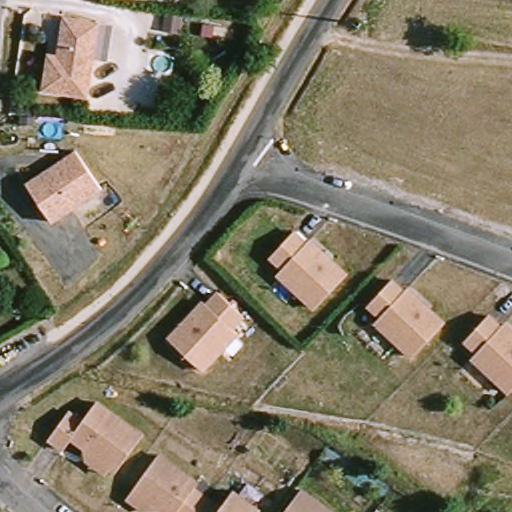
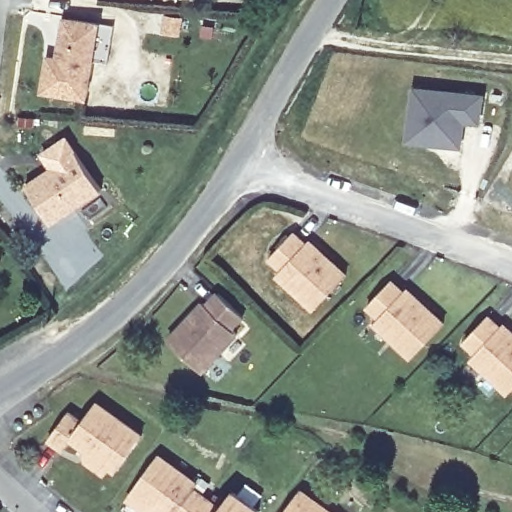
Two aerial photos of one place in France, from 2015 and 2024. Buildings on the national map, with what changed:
unchanged [(43,59),(52,61),(58,22),(93,27),(108,30),(102,68),(87,66),(82,102),(38,95),(43,59)]
new [(415,85),(483,94),(479,121),(464,119),(461,145),(409,138),(415,85)]
unchanged [(25,181),(75,148),(102,188),(53,221),(25,181)]
unchanged [(311,307),(274,272),(279,267),(266,256),(289,231),(302,242),(305,239),(318,251),(328,260),(342,273),(311,307)]
unchanged [(409,354),(372,320),(377,314),(364,303),(387,278),(400,290),(402,287),(416,299),(425,308),(440,321),(409,354)]
unchanged [(199,370),(166,339),(201,302),(206,307),(217,294),(242,318),(231,330),(234,333),(221,346),(213,356),(199,370)]
unchanged [(469,354),(474,349),(462,338),(484,313),(497,324),(500,321),(512,333),(512,384),(507,389),(469,354)]
unchanged [(87,462),(92,455),(68,438),(60,449),(46,439),(65,411),(79,421),(93,402),(139,435),(114,471),(107,466),(101,473),(87,462)]
unchanged [(126,499),(131,492),(129,490),(155,455),(195,483),(191,488),(218,507),(230,491),(256,510),(255,512),(160,512),(147,503),(142,510),(126,499)]
unchanged [(302,489),(335,512),(286,512),(302,489)]

